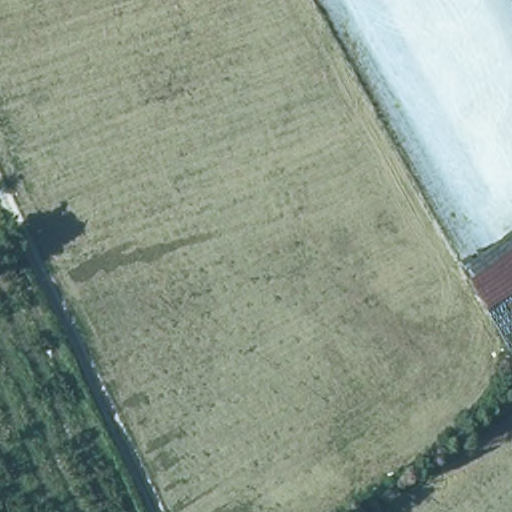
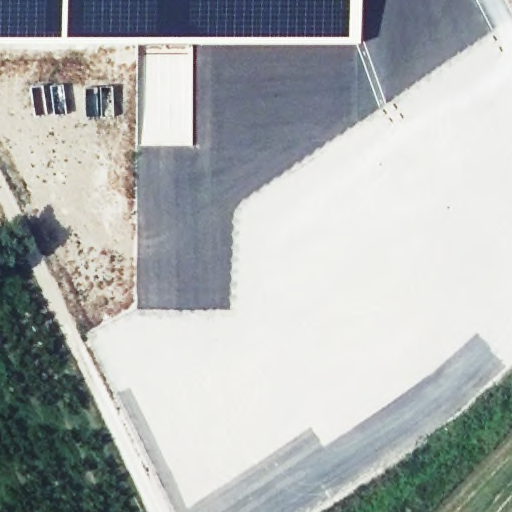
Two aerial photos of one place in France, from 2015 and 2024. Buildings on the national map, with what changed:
new [(124,41),(0,41),(0,0),(358,0),(357,45),(124,41)]

